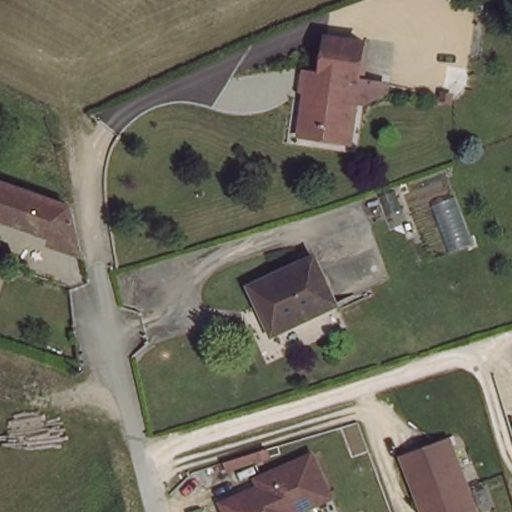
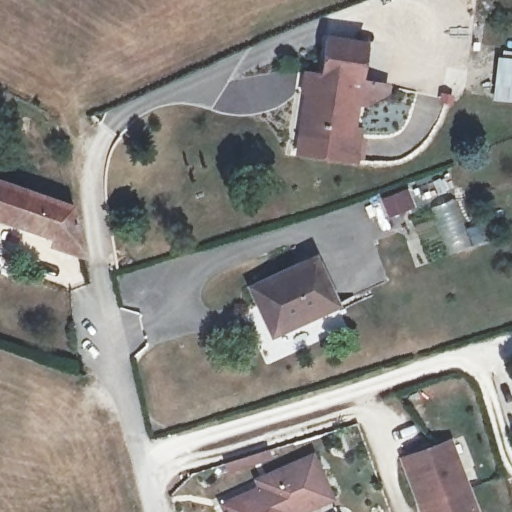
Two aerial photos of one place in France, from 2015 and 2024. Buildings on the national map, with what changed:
unchanged [(304,130),(306,119),(315,66),(326,69),(331,32),(370,38),(364,75),(355,128),(353,138),(304,130)]
new [(495,55),(512,57),(512,103),(490,101),(495,55)]
unchanged [(78,219),(80,228),(74,242),(57,237),(58,234),(0,214),(0,176),(74,203),(78,219)]
unchanged [(0,247),(15,253),(7,274),(0,271),(0,247)]
unchanged [(316,257),(338,302),(272,330),(250,285),(316,257)]
unchanged [(403,451),(451,434),(479,512),(426,512),(403,451)]
unchanged [(230,494),(248,487),(245,479),(257,474),(301,456),(319,499),(287,512),(237,512),(230,494)]

